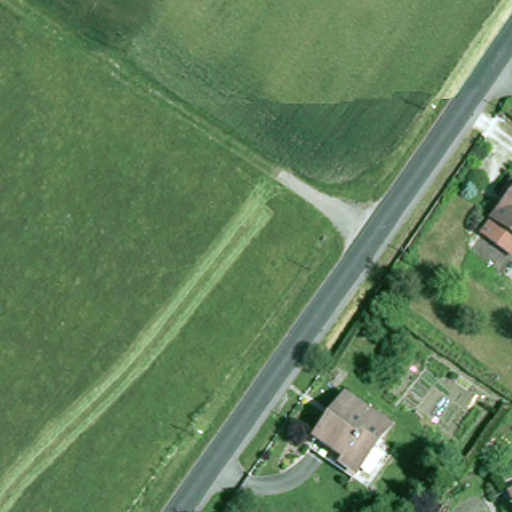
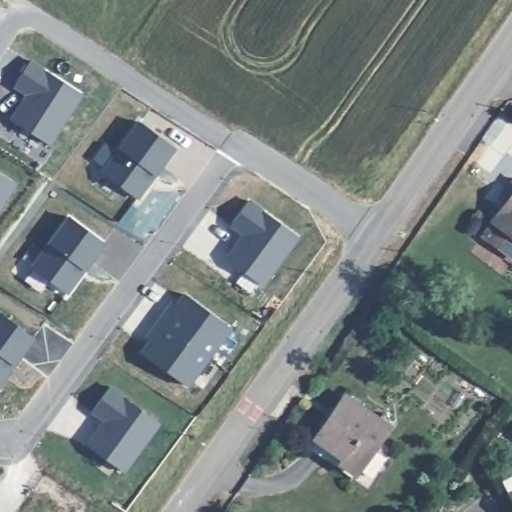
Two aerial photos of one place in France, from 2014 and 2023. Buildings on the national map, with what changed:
new [(51,144),(9,119),(25,94),(13,87),(28,61),(82,94),(51,144)]
new [(99,171),(137,119),(176,147),(138,199),(99,171)]
new [(0,205),(0,172),(15,182),(0,205)]
unchanged [(495,224),(510,201),(504,197),(512,185),(512,237),(495,224)]
new [(245,234),(232,225),(249,201),(299,237),(263,286),(227,260),(240,241),(245,234)]
new [(67,294),(33,268),(70,218),(105,244),(85,271),(80,278),(67,294)]
new [(139,352),(147,342),(143,339),(172,299),(176,301),(182,292),(232,327),(187,386),(139,352)]
new [(0,382),(0,313),(34,337),(0,382)]
new [(106,421),(93,411),(110,387),(159,423),(124,472),(88,445),(101,427),(106,421)]
unchanged [(359,477),(341,465),(344,461),(320,443),(349,400),(391,431),(359,477)]
unchanged [(507,495),(512,493),(512,508),(507,495)]

